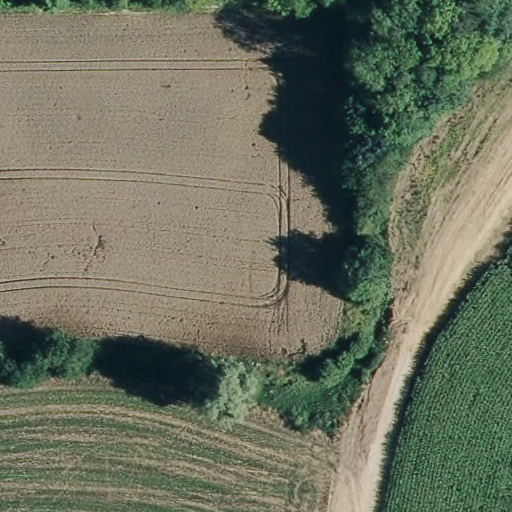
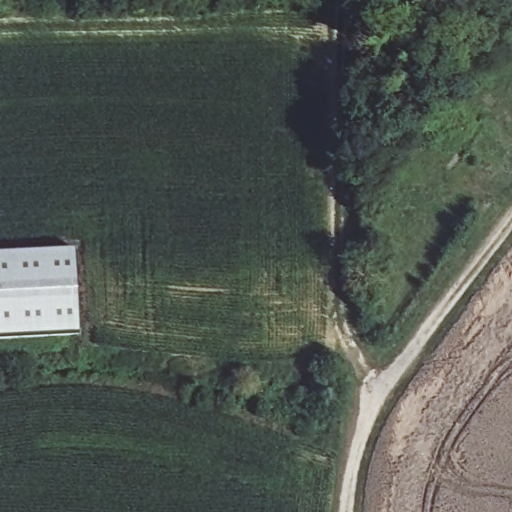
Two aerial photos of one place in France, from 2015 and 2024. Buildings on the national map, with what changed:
new [(0,337),(0,253),(77,249),(82,333),(0,337)]

